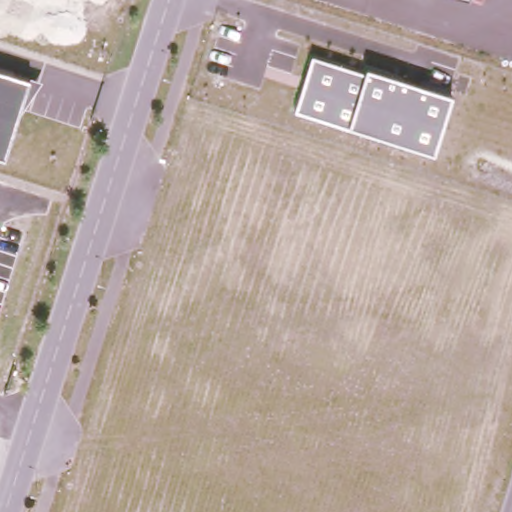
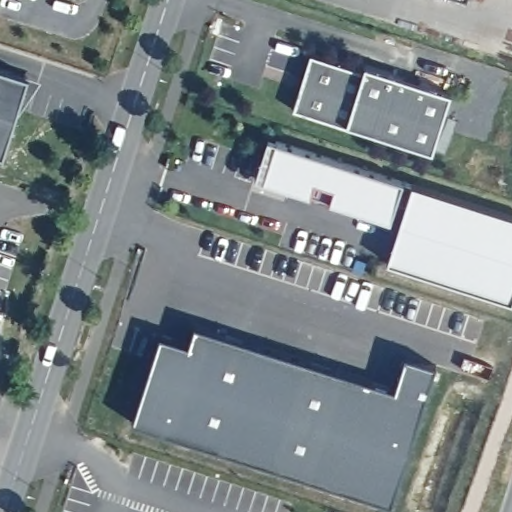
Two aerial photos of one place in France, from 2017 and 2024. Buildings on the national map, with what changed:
unchanged [(446,98),(431,155),(287,107),(302,57),(446,98)]
unchanged [(28,75),(41,80),(16,115),(3,155),(0,154),(0,67),(27,76),(28,75)]
new [(512,210),(512,294),(398,258),(417,202),(406,200),(400,218),(275,177),(285,139),(512,210)]
new [(162,340),(191,349),(197,330),(396,394),(407,361),(439,372),(393,510),(134,427),(162,340)]

